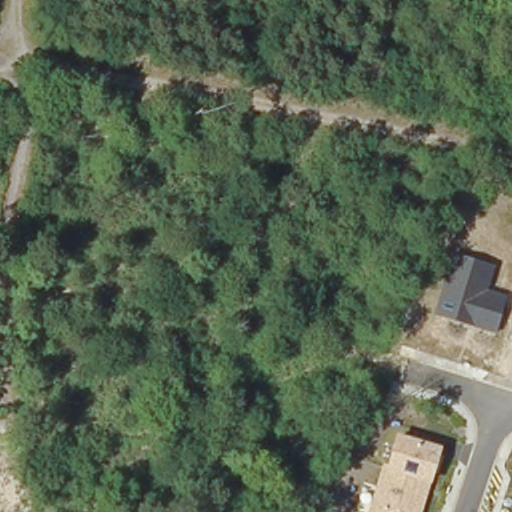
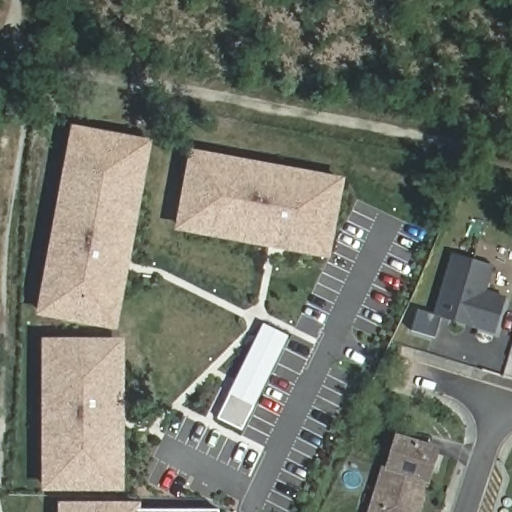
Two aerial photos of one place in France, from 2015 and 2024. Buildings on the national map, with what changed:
new [(50,283),(47,282),(55,236),(60,236),(68,190),(65,189),(72,147),(76,149),(79,132),(151,143),(141,200),(145,200),(140,220),(137,219),(134,234),(138,235),(126,297),(122,296),(116,327),(45,313),(50,283)]
new [(192,179),(189,177),(192,156),(266,170),(266,166),(290,171),(289,174),(346,185),(342,206),(338,206),(329,256),(313,253),(313,257),(270,250),(271,245),(256,242),(255,246),(214,239),(214,235),(183,229),(192,179)]
unchanged [(495,333),(433,316),(451,252),(494,264),(486,290),(506,296),(495,333)]
new [(263,328),(287,340),(255,406),(242,432),(219,420),(231,394),(263,328)]
new [(123,345),(123,488),(50,488),(46,345),(123,345)]
unchanged [(368,512),(382,464),(387,465),(397,433),(443,447),(432,485),(423,512),(368,512)]
new [(139,511),(221,511),(221,512),(62,512),(61,508),(139,508),(139,511)]

